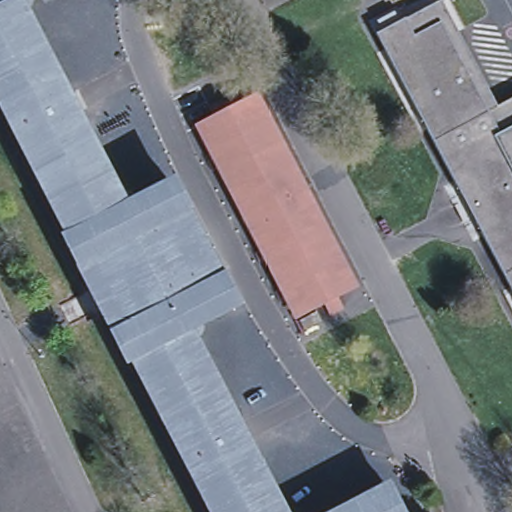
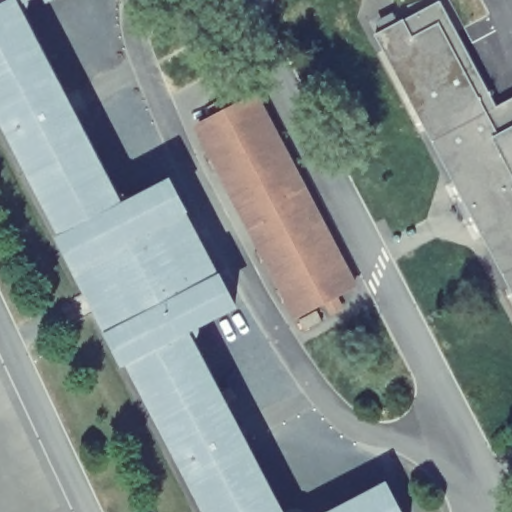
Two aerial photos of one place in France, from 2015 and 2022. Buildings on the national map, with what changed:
unchanged [(31,5),(30,11),(24,13),(121,199),(125,196),(131,198),(133,203),(137,201),(135,198),(141,196),(142,198),(173,183),(236,307),(198,326),(200,331),(199,336),(193,338),(284,512),(212,512),(133,360),(129,362),(80,266),(79,266),(65,238),(70,236),(0,103),(0,0),(28,0),(31,5)]
unchanged [(47,2),(46,0),(52,0),(47,2)]
unchanged [(376,35),(440,1),(496,107),(512,99),(512,290),(385,51),(376,35)]
unchanged [(215,185),(210,176),(221,171),(199,126),(216,118),(211,107),(221,103),(226,112),(230,111),(227,104),(238,99),(240,105),(257,97),(356,287),(337,297),(342,309),(333,314),(327,302),(298,316),(227,180),(215,185)]
unchanged [(403,512),(338,512),(389,485),(403,512)]

